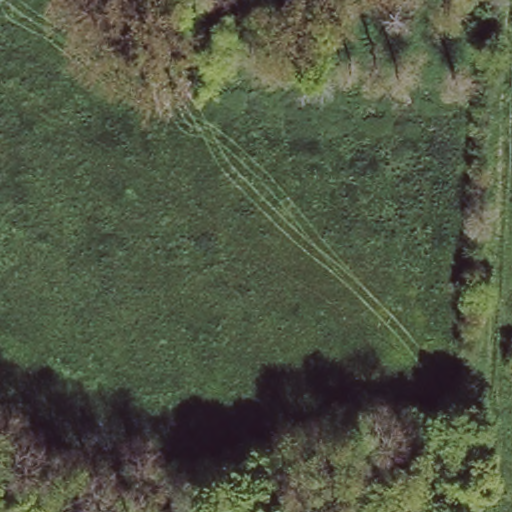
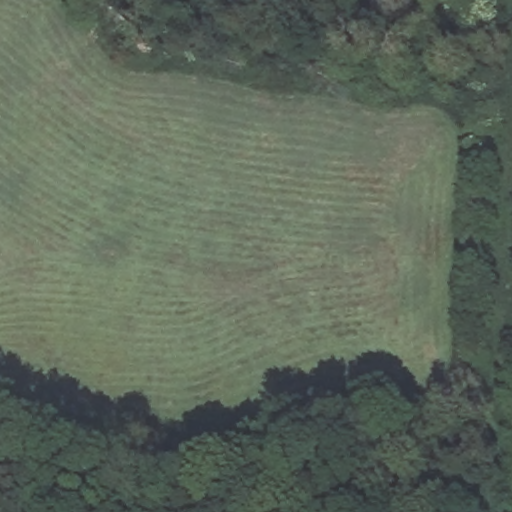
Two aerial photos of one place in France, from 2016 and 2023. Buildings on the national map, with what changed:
[]

